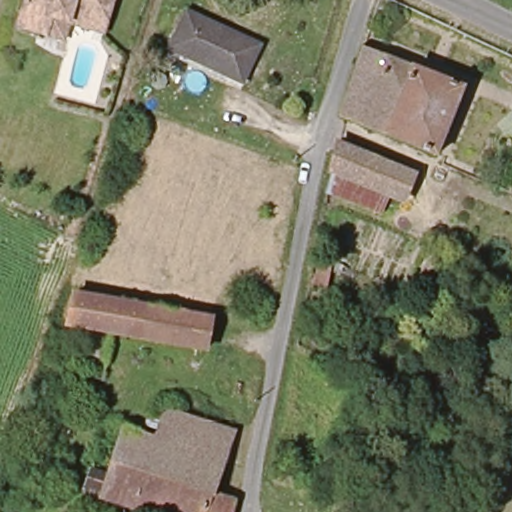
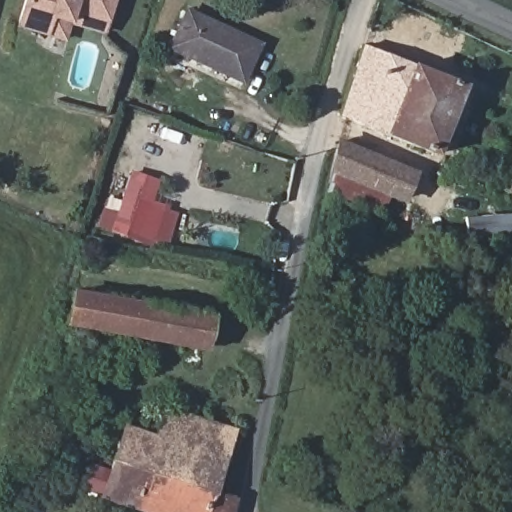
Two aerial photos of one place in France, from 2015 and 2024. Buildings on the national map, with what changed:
unchanged [(20,22),(28,0),(116,0),(106,31),(73,19),(66,39),(50,33),(20,22)]
unchanged [(193,14),(264,47),(246,85),(175,52),(193,14)]
unchanged [(348,117),(371,48),(470,88),(443,161),(355,121),(348,117)]
unchanged [(345,143),(419,179),(406,204),(339,171),(345,143)]
new [(152,204),(177,212),(168,245),(152,240),(150,247),(114,236),(117,225),(114,224),(129,172),(159,180),(152,204)]
unchanged [(510,192),(512,186),(512,193),(510,192)]
unchanged [(317,262),(330,265),(322,298),(310,295),(317,262)]
unchanged [(209,318),(203,347),(108,329),(101,371),(72,366),(80,324),(63,322),(68,292),(209,318)]
unchanged [(109,503),(89,497),(95,477),(116,483),(132,427),(149,432),(154,415),(165,419),(168,411),(234,433),(212,501),(238,508),(237,512),(122,512),(108,508),(109,503)]

